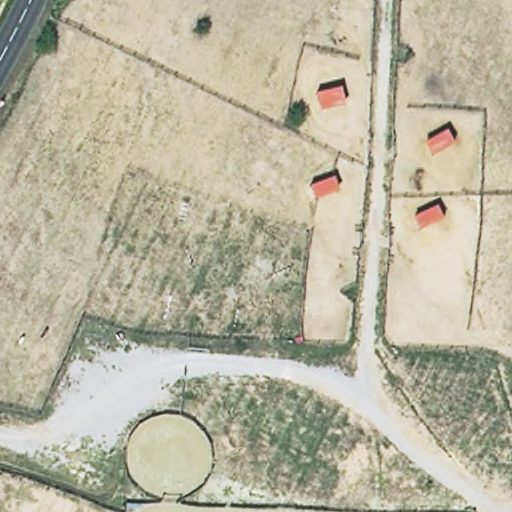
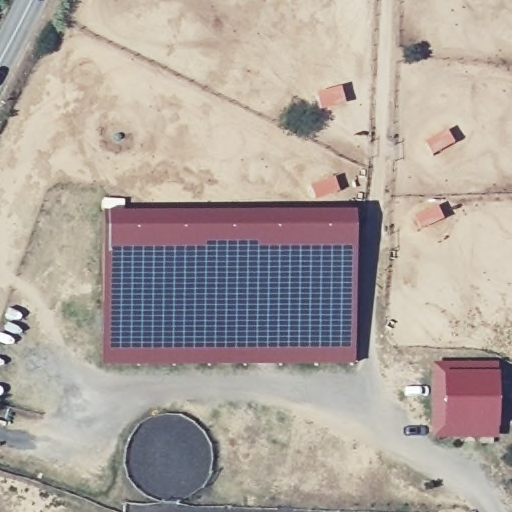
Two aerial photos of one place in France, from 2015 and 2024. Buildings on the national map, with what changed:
new [(100,214),(354,213),(355,364),(102,367),(100,214)]
new [(495,439),(429,439),(430,362),(495,362),(495,439)]

